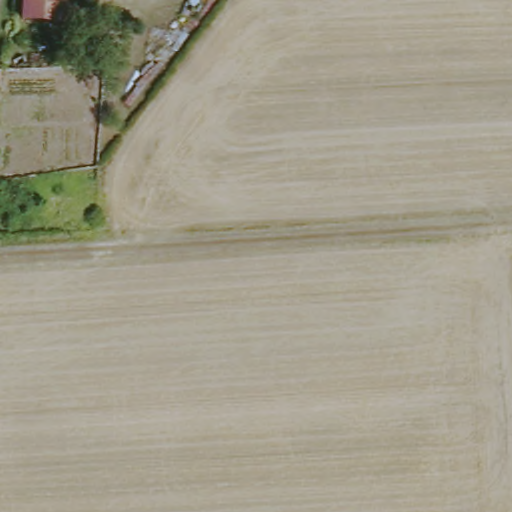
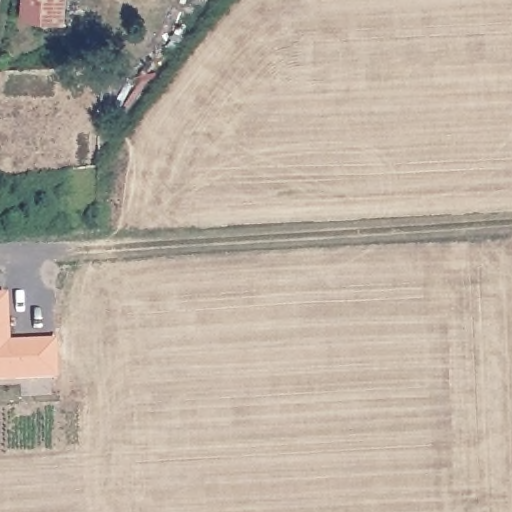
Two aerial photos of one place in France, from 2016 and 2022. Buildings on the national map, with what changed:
unchanged [(65,24),(27,23),(28,0),(67,0),(65,24)]
new [(13,345),(59,343),(60,380),(0,380),(0,295),(12,295),(13,345)]

